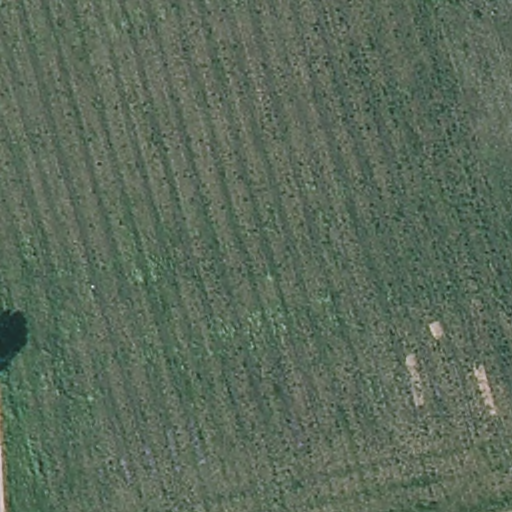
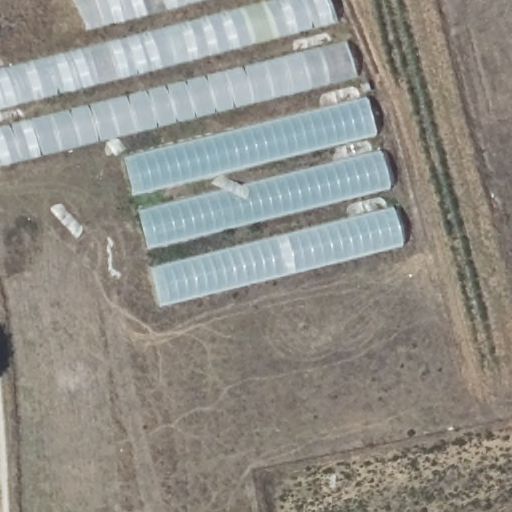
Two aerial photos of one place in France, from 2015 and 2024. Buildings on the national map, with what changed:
new [(0,71),(88,47),(73,0),(327,0),(358,79),(0,167),(0,71)]
new [(366,98),(376,134),(133,194),(123,159),(366,98)]
new [(381,151),(390,188),(147,249),(136,211),(381,151)]
new [(394,204),(403,242),(159,303),(149,265),(394,204)]

